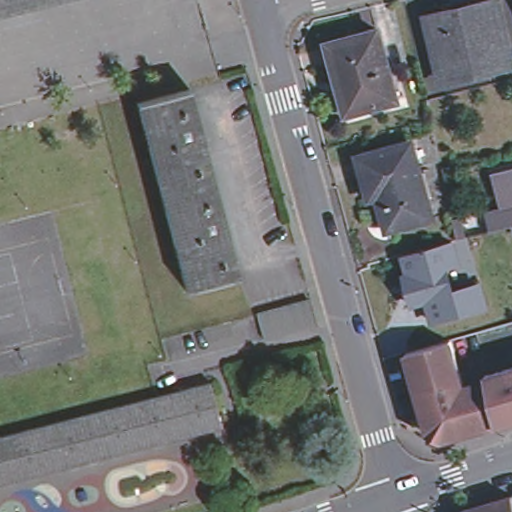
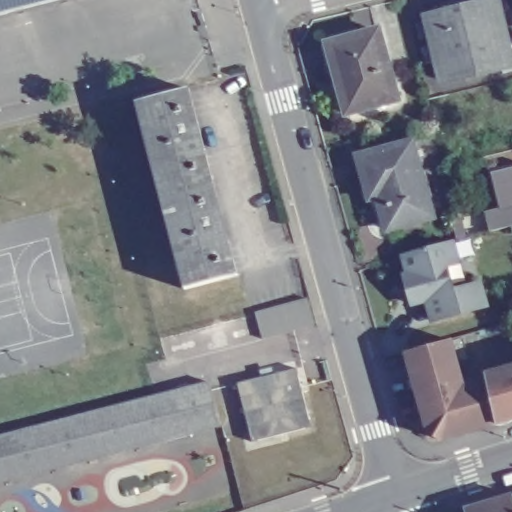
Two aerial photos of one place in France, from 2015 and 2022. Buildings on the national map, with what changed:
unchanged [(0,20),(0,0),(80,0),(0,20)]
unchanged [(494,2),(509,66),(442,82),(427,18),(494,2)]
unchanged [(375,31),(394,101),(343,115),(324,45),(375,31)]
unchanged [(211,186),(158,200),(133,107),(187,92),(211,186)]
unchanged [(409,147),(429,221),(384,233),(375,199),(368,201),(357,161),(409,147)]
unchanged [(488,174),(512,169),(512,208),(497,211),(488,174)]
unchanged [(235,280),(182,294),(158,200),(211,186),(235,280)]
unchanged [(456,241),(463,266),(450,270),(455,289),(483,282),(489,309),(429,324),(426,305),(411,307),(402,274),(406,272),(402,256),(456,241)]
unchanged [(279,309),(291,305),(305,302),(311,328),(299,332),(286,335),(273,338),(260,342),(253,315),(266,312),(279,309)]
unchanged [(439,438),(430,434),(407,354),(410,354),(452,342),(467,399),(473,397),(482,430),(464,436),(447,442),(439,438)]
new [(311,426),(254,441),(240,383),(296,369),(311,426)]
unchanged [(512,369),(512,421),(497,425),(486,376),(512,369)]
unchanged [(202,390),(213,435),(0,488),(0,441),(202,390)]
unchanged [(512,508),(512,512),(462,512),(510,498),(512,508)]

